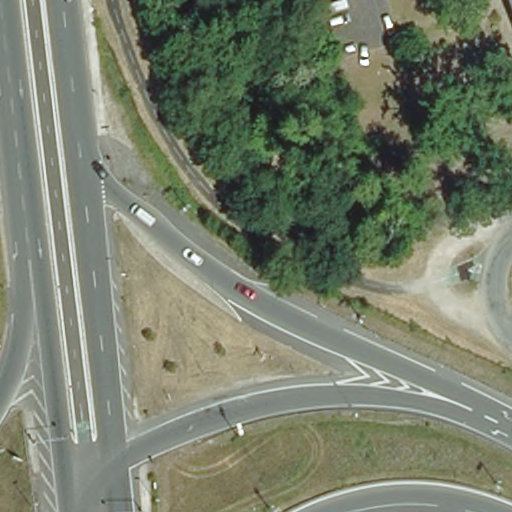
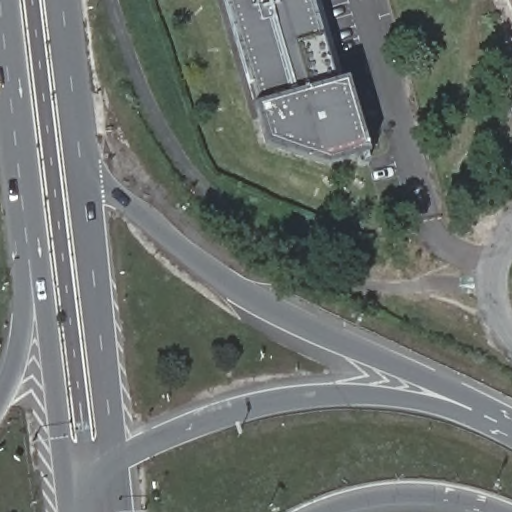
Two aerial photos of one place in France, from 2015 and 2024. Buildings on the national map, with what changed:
new [(347,77),(367,152),(327,165),(267,145),(256,105),(225,0),(314,0),(338,80),(347,77)]
unchanged [(505,0),(512,0),(512,20),(505,0)]

